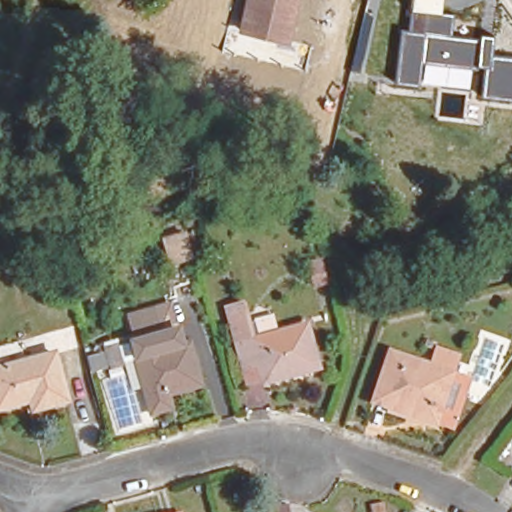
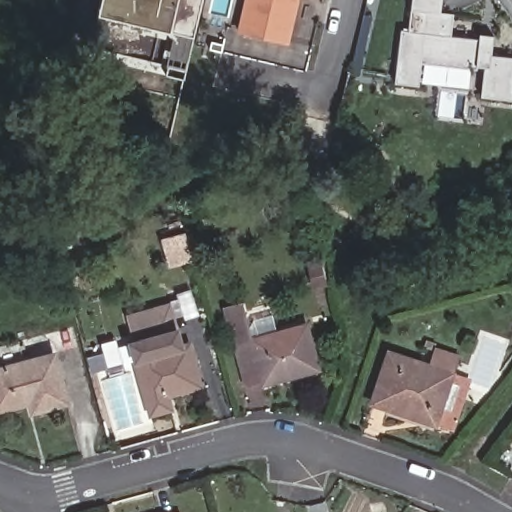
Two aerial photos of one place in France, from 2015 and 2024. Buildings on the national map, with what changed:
new [(99,14),(102,0),(202,0),(185,71),(166,67),(172,33),(99,14)]
unchanged [(283,42),(235,31),(242,0),(293,0),(283,42)]
unchanged [(486,67),(477,66),(476,70),(471,70),(468,88),(423,83),(425,64),(421,63),(418,84),(395,82),(402,31),(408,31),(411,11),(412,0),(442,0),(440,12),(451,14),(448,36),(480,40),(481,36),(492,37),(490,56),(512,58),(512,99),(483,96),(486,67)]
unchanged [(190,256),(170,261),(164,237),(183,232),(190,256)]
unchanged [(326,285),(312,289),(305,263),(319,259),(326,285)]
unchanged [(323,369),(267,384),(266,380),(250,384),(232,319),(250,314),(253,323),(277,316),(281,334),(310,325),(323,369)]
unchanged [(175,358),(184,356),(193,393),(195,399),(161,408),(162,412),(165,422),(145,427),(130,372),(129,372),(119,375),(114,358),(130,354),(125,333),(124,329),(165,318),(175,358)]
unchanged [(446,432),(430,426),(366,404),(385,353),(423,367),(430,347),(455,356),(448,375),(465,381),(446,432)]
unchanged [(48,349),(62,397),(26,407),(24,398),(0,405),(0,362),(48,349)]

